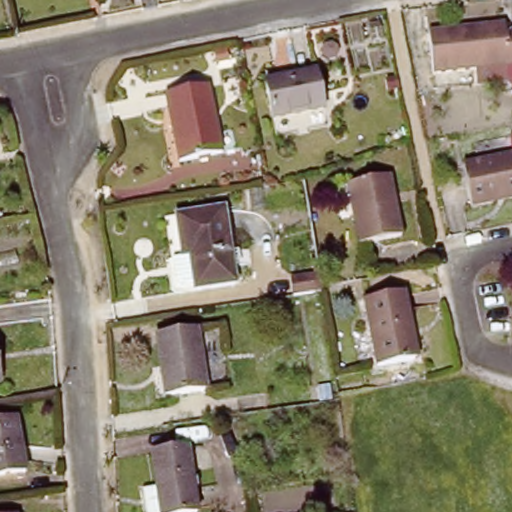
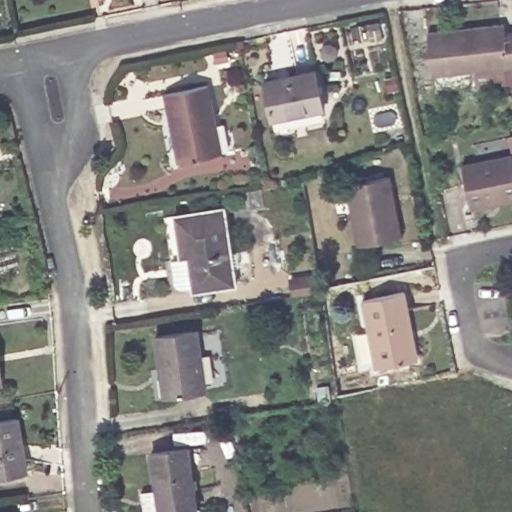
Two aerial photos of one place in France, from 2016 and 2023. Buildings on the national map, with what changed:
unchanged [(431,79),(423,36),(500,20),(501,27),(512,25),(512,63),(431,79)]
unchanged [(321,118),(271,127),(264,91),(314,82),(321,118)]
unchanged [(216,152),(173,160),(161,95),(205,86),(216,152)]
unchanged [(470,213),(461,171),(512,160),(512,204),(470,213)]
unchanged [(401,238),(359,246),(348,185),(390,177),(401,238)]
unchanged [(236,285),(195,293),(192,284),(178,287),(175,284),(171,260),(180,259),(175,218),(225,209),(236,285)]
unchanged [(295,287),(292,269),(320,264),(323,283),(295,287)]
unchanged [(411,360),(377,367),(363,300),(403,292),(411,332),(416,360),(411,360)]
unchanged [(200,394),(161,400),(151,341),(191,336),(200,394)]
unchanged [(0,384),(0,355),(5,384),(0,384)]
unchanged [(0,476),(0,422),(14,420),(21,472),(0,476)]
unchanged [(176,512),(148,512),(145,485),(158,484),(153,450),(188,445),(199,509),(176,512)]

